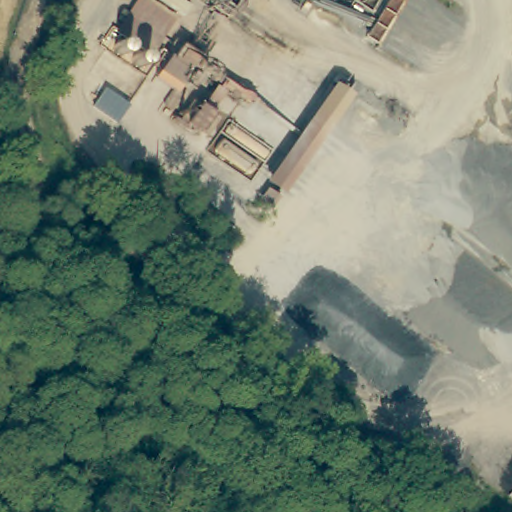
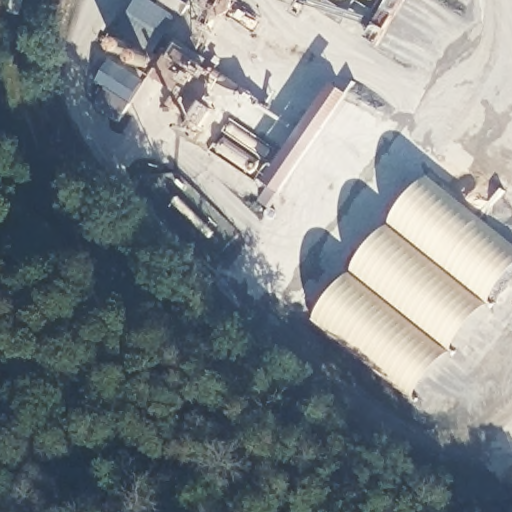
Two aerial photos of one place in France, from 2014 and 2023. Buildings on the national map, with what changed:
unchanged [(138,0),(182,0),(195,11),(188,23),(180,16),(159,54),(120,26),(138,0)]
unchanged [(353,94),(286,192),(267,175),(334,79),(353,94)]
new [(425,180),(512,251),(512,277),(416,399),(314,320),(425,180)]

